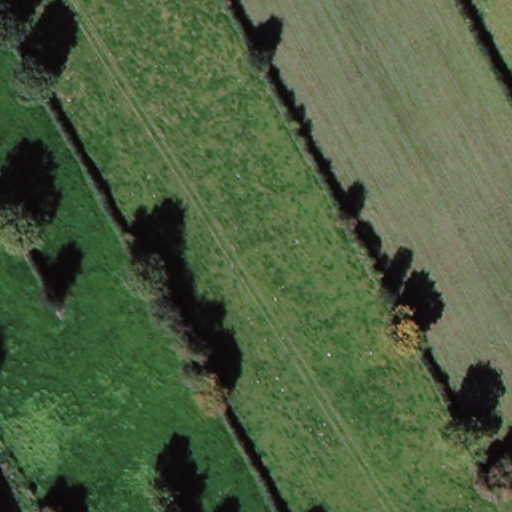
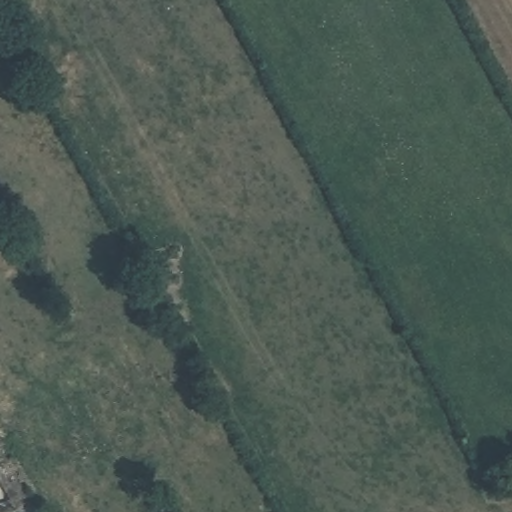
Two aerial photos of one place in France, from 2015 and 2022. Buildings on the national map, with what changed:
[]

